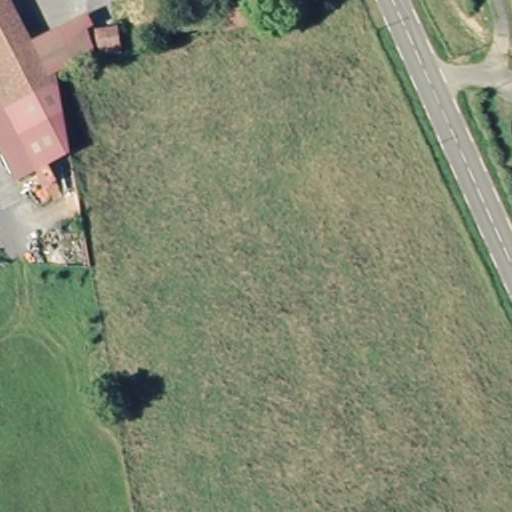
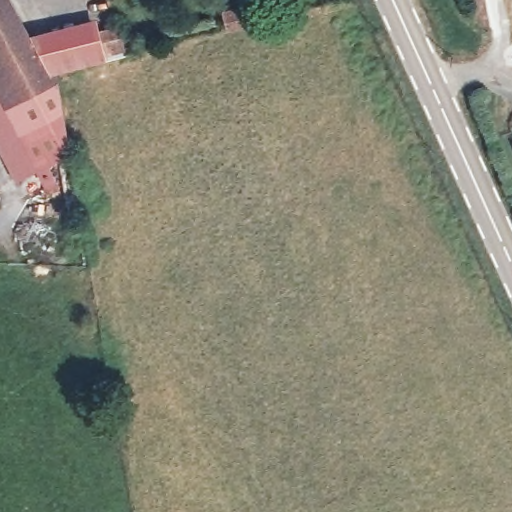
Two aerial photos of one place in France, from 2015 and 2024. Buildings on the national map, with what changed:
unchanged [(0,6),(0,0),(13,0),(16,5),(0,6)]
unchanged [(34,41),(52,76),(64,71),(78,151),(39,172),(22,181),(0,141),(0,6),(16,5),(34,41)]
unchanged [(90,17),(100,34),(117,27),(122,57),(96,55),(64,71),(52,76),(34,41),(90,17)]

